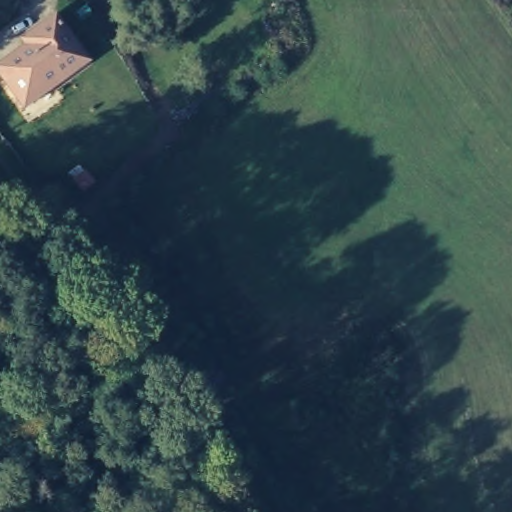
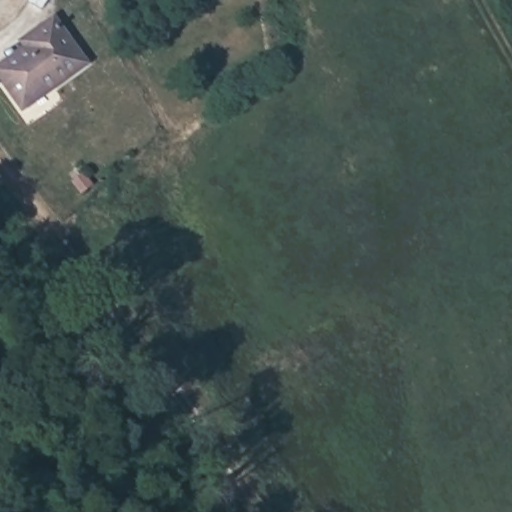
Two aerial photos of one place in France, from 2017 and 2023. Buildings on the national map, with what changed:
unchanged [(21,111),(0,80),(0,75),(40,49),(34,39),(53,28),(82,72),(21,111)]

